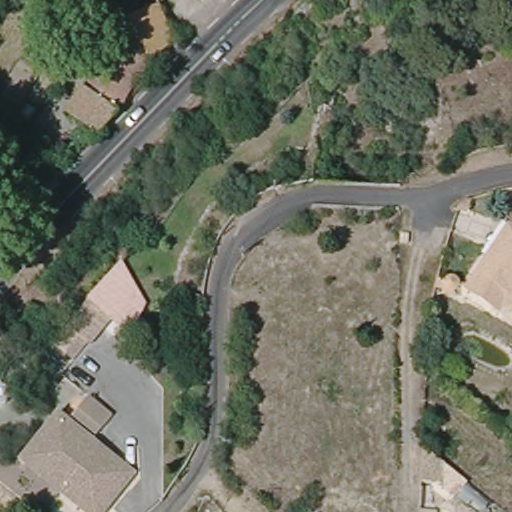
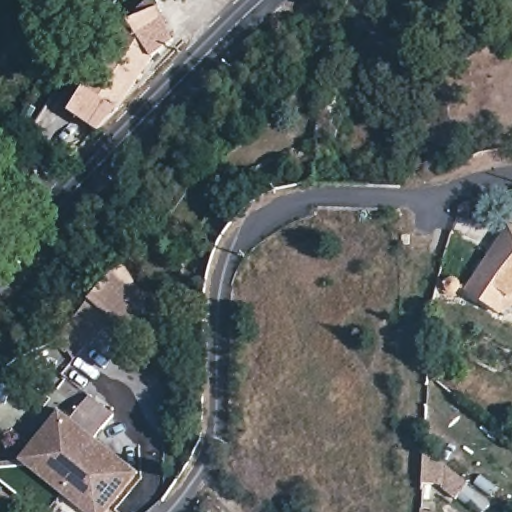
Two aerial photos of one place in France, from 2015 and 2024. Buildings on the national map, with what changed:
unchanged [(80,1),(78,0),(84,0),(80,1)]
unchanged [(93,6),(90,0),(107,0),(93,6)]
unchanged [(117,112),(99,131),(71,111),(129,24),(132,22),(161,10),(175,41),(117,112)]
unchanged [(75,157),(68,149),(73,144),(80,151),(75,157)]
unchanged [(461,209),(463,206),(466,204),(469,203),(474,201),(473,209),(472,215),(467,214),(460,212),(461,209)]
unchanged [(496,308),(463,285),(485,254),(505,222),(512,223),(512,306),(501,312),(496,308)]
unchanged [(86,324),(78,317),(89,300),(123,261),(148,303),(130,337),(111,321),(90,347),(87,345),(75,358),(65,348),(86,324)]
unchanged [(450,273),(451,273),(451,274),(452,274),(453,274),(453,275),(454,275),(454,276),(455,276),(455,277),(455,278),(455,279),(455,280),(455,281),(455,282),(455,283),(455,284),(455,285),(454,285),(453,286),(452,286),(452,287),(451,287),(450,288),(449,288),(447,288),(446,288),(446,287),(445,287),(444,286),(443,286),(443,285),(442,285),(442,284),(441,283),(441,282),(441,281),(441,280),(441,279),(441,278),(441,277),(442,277),(442,276),(443,275),(444,275),(444,274),(445,274),(445,273),(446,273),(447,273),(448,273),(449,273),(450,273)]
unchanged [(109,411),(89,435),(86,439),(125,470),(100,500),(32,444),(56,415),(62,420),(65,416),(85,392),(109,411)]
unchanged [(125,470),(86,439),(89,435),(131,470),(97,512),(84,512),(15,456),(55,408),(65,416),(62,420),(56,415),(32,444),(100,500),(125,470)]

